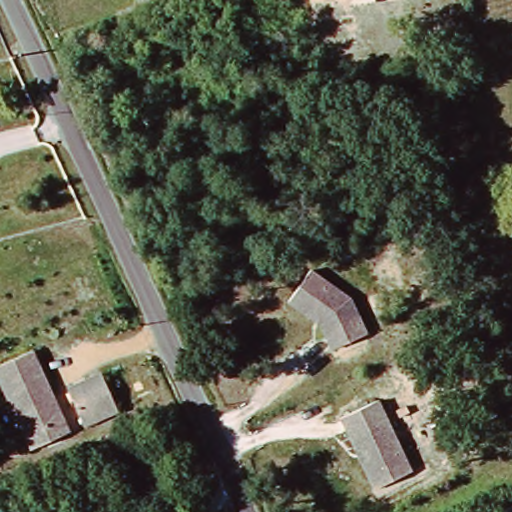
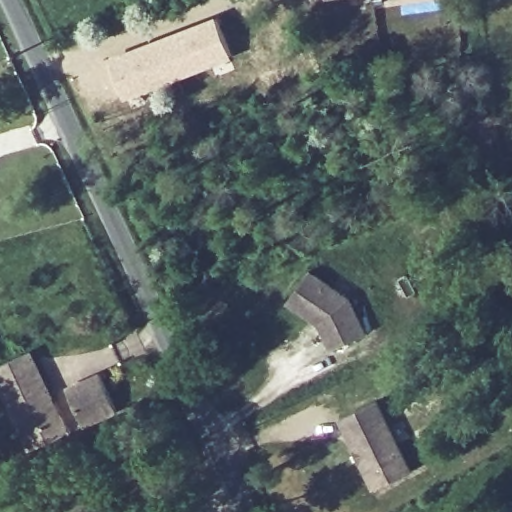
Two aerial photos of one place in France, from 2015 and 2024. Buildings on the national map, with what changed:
new [(216,15),(233,56),(159,86),(125,98),(109,55),(216,15)]
unchanged [(333,349),(320,321),(290,301),(311,270),(350,297),(367,332),(333,349)]
unchanged [(32,448),(0,381),(0,362),(31,350),(38,365),(69,431),(32,448)]
unchanged [(85,423),(67,387),(100,372),(118,408),(85,423)]
unchanged [(380,399),(415,470),(378,488),(343,417),(380,399)]
unchanged [(487,506),(512,499),(512,512),(490,512),(487,506)]

